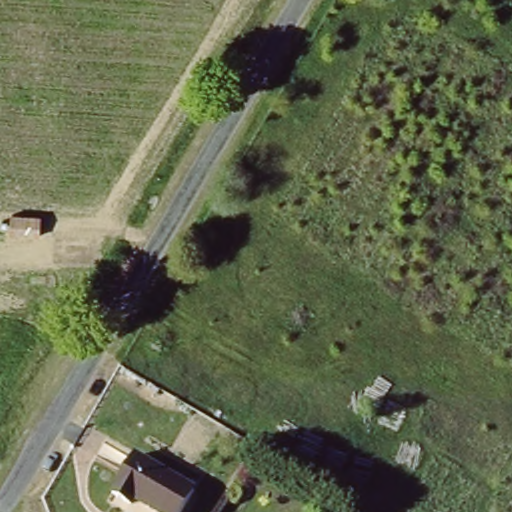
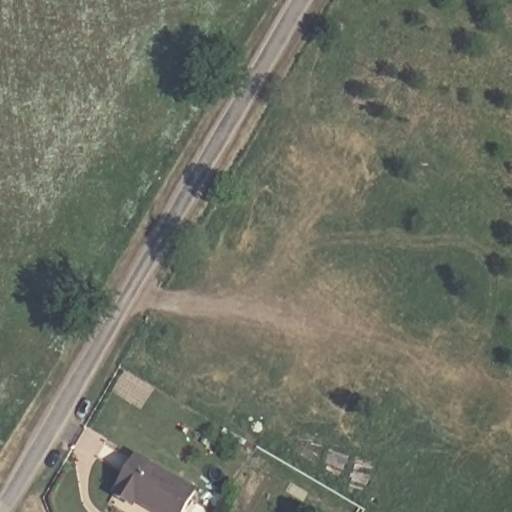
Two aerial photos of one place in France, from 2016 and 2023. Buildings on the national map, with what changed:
unchanged [(180,512),(142,512),(124,502),(111,495),(132,459),(191,493),(180,512)]

